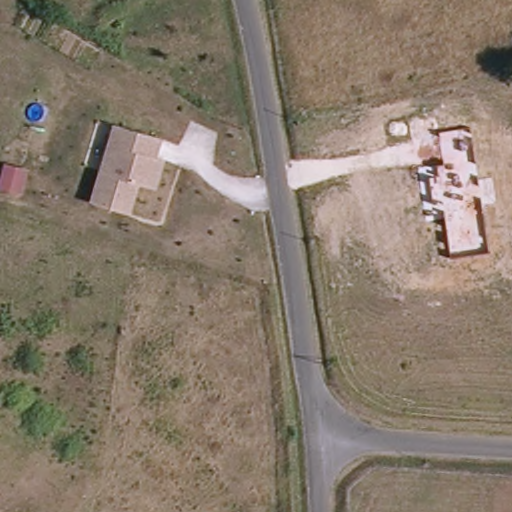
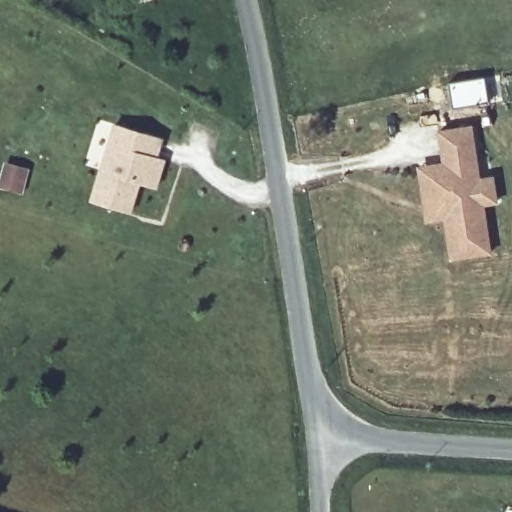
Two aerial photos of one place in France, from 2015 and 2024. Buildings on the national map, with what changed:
unchanged [(139,182),(129,213),(93,201),(115,123),(160,137),(155,156),(164,158),(155,187),(139,182)]
new [(473,124),(481,178),(494,176),(499,205),(486,207),(492,256),(449,262),(443,221),(424,224),(416,166),(441,162),(437,130),(473,124)]

